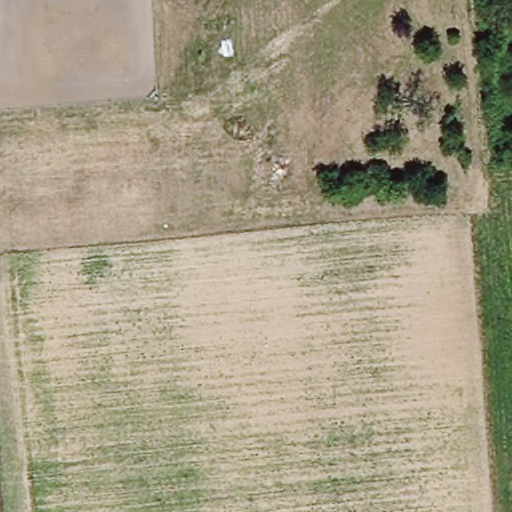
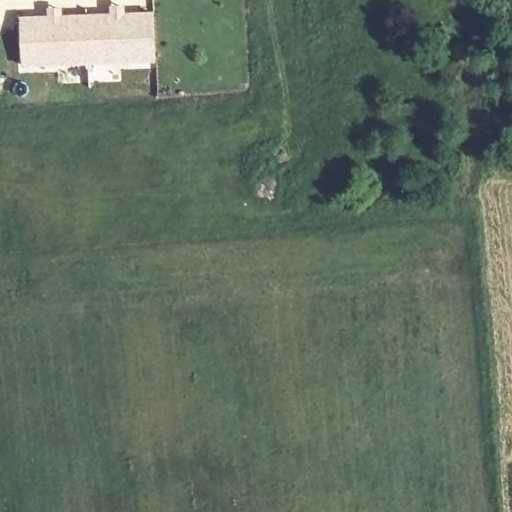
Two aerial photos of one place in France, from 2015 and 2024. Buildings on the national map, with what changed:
new [(46,14),(47,5),(62,6),(62,12),(109,12),(109,4),(121,5),(121,10),(154,10),(155,64),(20,67),(19,15),(46,14)]

